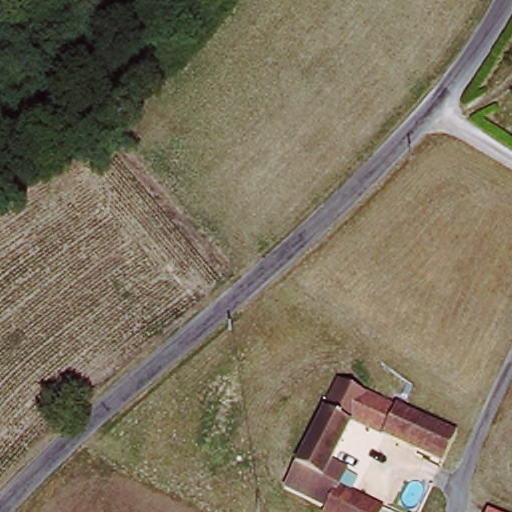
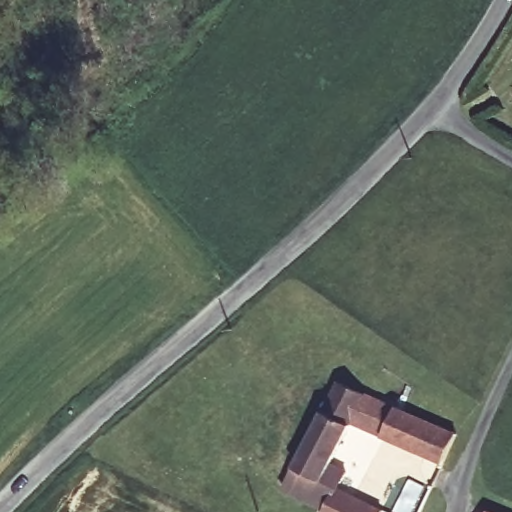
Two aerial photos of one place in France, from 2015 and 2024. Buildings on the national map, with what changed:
unchanged [(461,431),(451,460),(356,418),(314,500),(286,486),(344,380),(461,431)]
unchanged [(325,512),(339,485),(386,510),(384,512),(325,512)]

